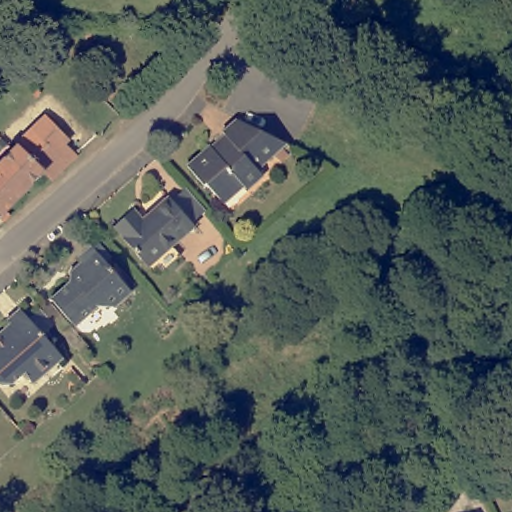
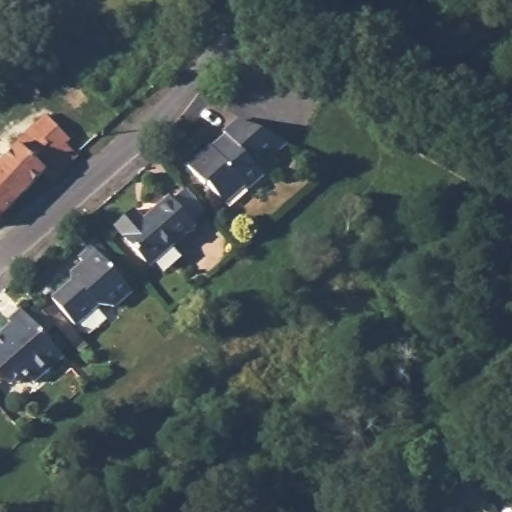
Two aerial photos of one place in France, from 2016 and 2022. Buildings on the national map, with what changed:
unchanged [(70,141),(67,146),(73,153),(78,157),(54,182),(47,175),(0,225),(0,167),(46,116),(70,141)]
unchanged [(206,182),(204,184),(188,166),(211,146),(213,148),(227,136),(224,132),(239,119),(286,142),(257,167),(262,173),(246,187),(242,183),(224,201),(206,182)]
unchanged [(120,231),(139,214),(147,224),(173,201),(199,231),(155,270),(120,231)]
unchanged [(52,304),(71,288),(71,277),(82,276),(88,271),(79,261),(91,249),(131,295),(113,311),(97,308),(74,328),(52,304)]
unchanged [(7,320),(23,308),(62,356),(34,381),(24,370),(10,383),(0,382),(0,334),(11,324),(7,320)]

